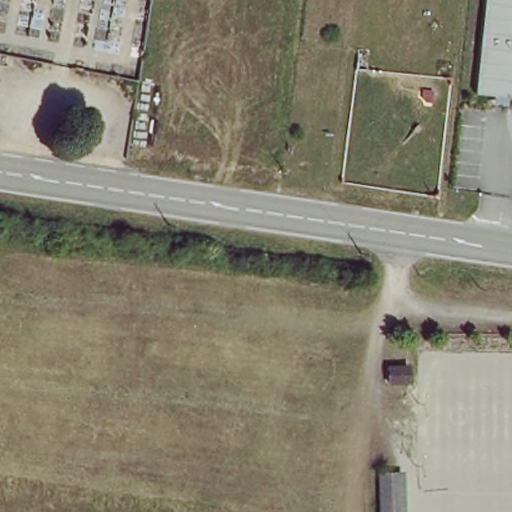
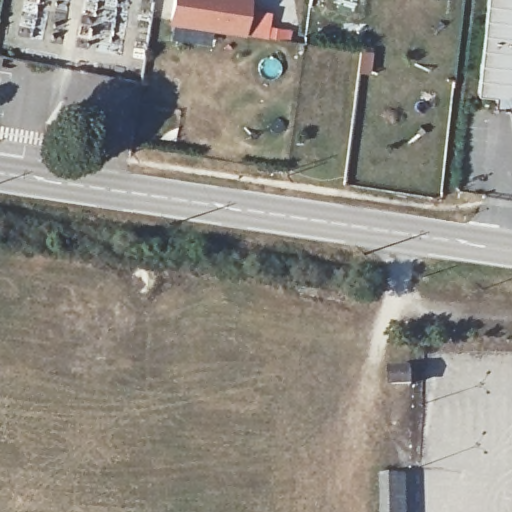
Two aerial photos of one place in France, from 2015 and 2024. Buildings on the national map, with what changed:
new [(173,0),(251,0),(246,34),(170,24),(173,0)]
unchanged [(479,94),(491,0),(512,0),(512,97),(479,94)]
unchanged [(388,371),(409,370),(409,388),(389,390),(388,371)]
unchanged [(406,512),(389,512),(389,477),(405,477),(406,512)]

